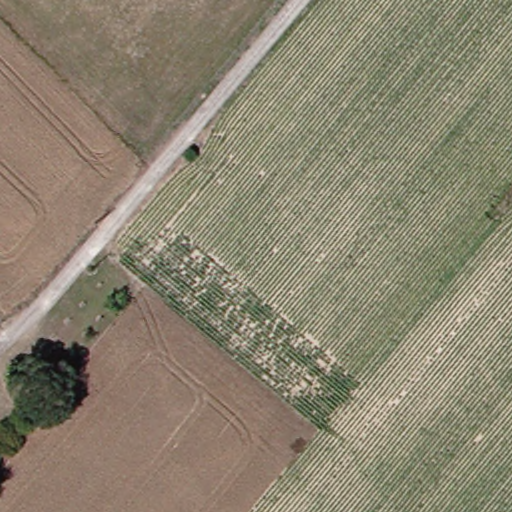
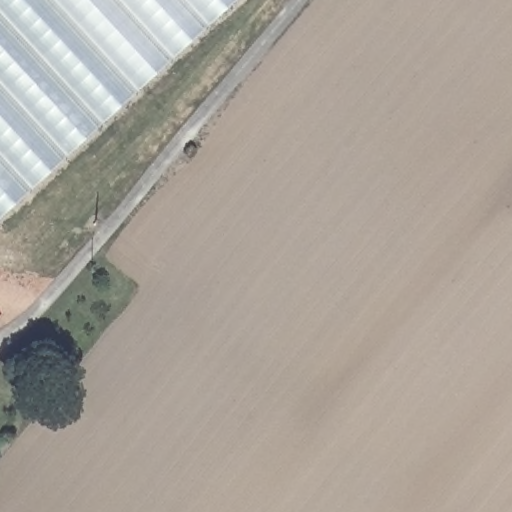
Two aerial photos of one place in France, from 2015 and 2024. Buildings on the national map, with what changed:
new [(238,0),(0,225),(0,0),(238,0)]

